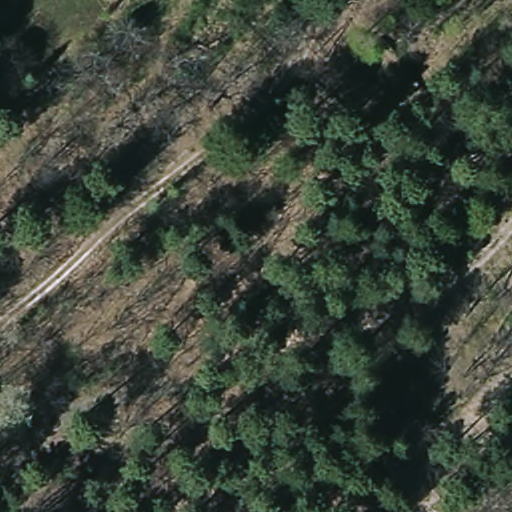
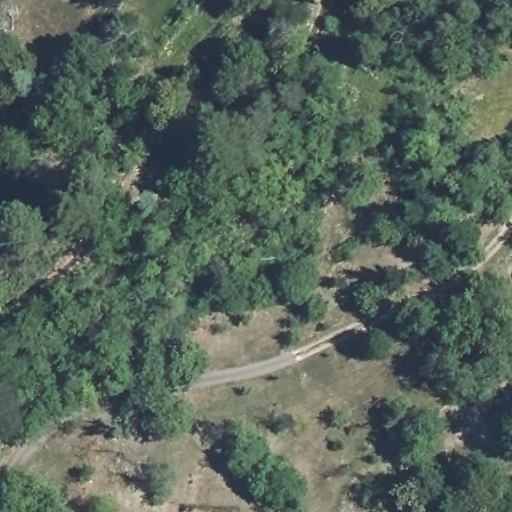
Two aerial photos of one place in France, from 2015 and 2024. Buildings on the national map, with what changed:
unchanged [(509,277),(512,273),(512,279),(509,277)]

